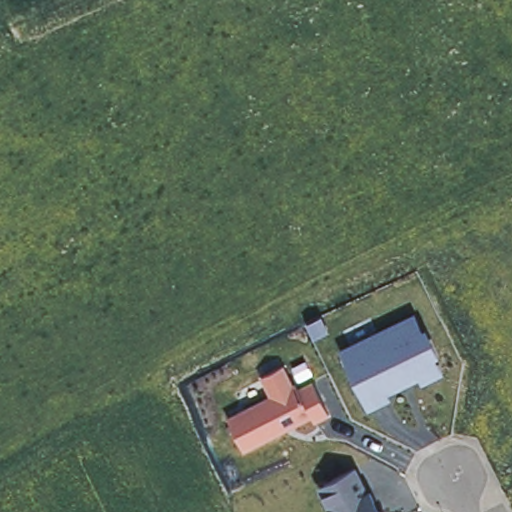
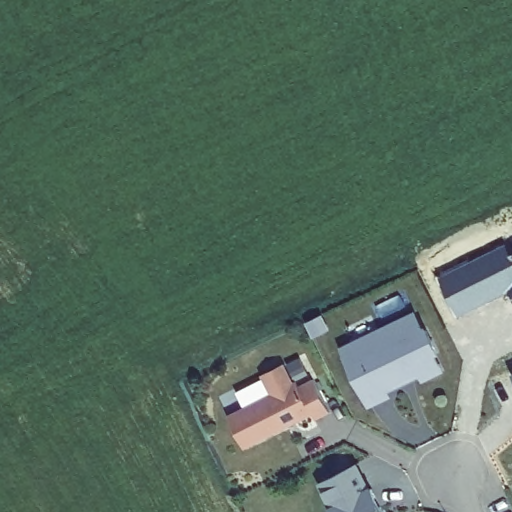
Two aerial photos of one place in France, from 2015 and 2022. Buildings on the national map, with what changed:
new [(510,257),(512,256),(512,299),(504,295),(453,320),(437,278),(505,244),(510,257)]
unchanged [(352,375),(354,375),(342,350),(412,315),(420,332),(423,330),(434,351),(430,353),(439,370),(422,378),(418,372),(382,390),(385,396),(368,405),(352,375)]
unchanged [(332,415),(317,423),(313,416),(246,450),(232,416),(272,395),(263,377),(287,365),(297,383),(300,381),(302,387),(317,380),(332,415)]
unchanged [(367,492),(371,490),(382,512),(330,512),(330,511),(333,510),(320,485),(355,467),(367,492)]

